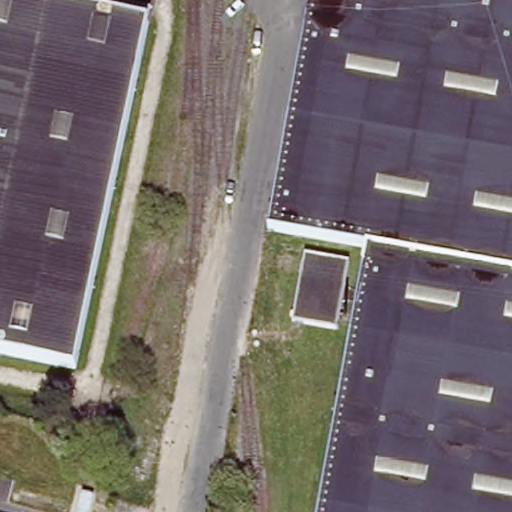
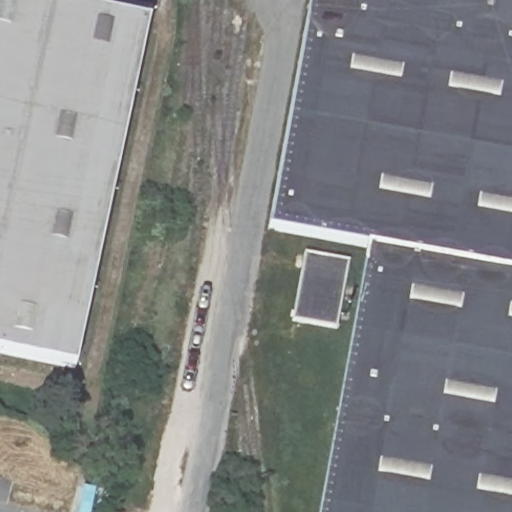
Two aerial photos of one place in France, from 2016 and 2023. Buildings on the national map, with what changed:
unchanged [(68,387),(0,372),(0,0),(25,0),(146,26),(68,387)]
unchanged [(318,512),(369,247),(271,227),(311,0),(512,0),(512,512),(318,512)]
unchanged [(333,328),(293,320),(299,286),(304,256),(344,265),(339,293),(333,328)]

